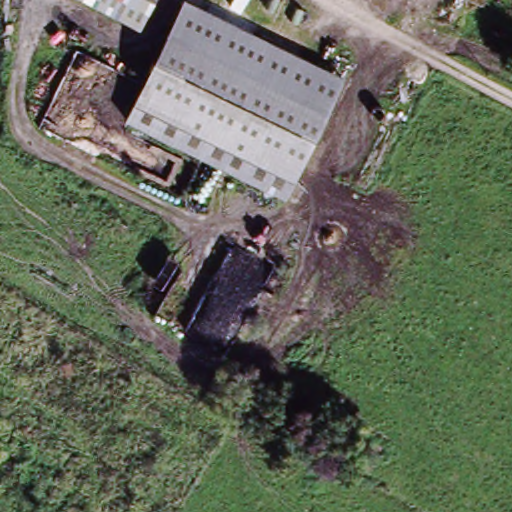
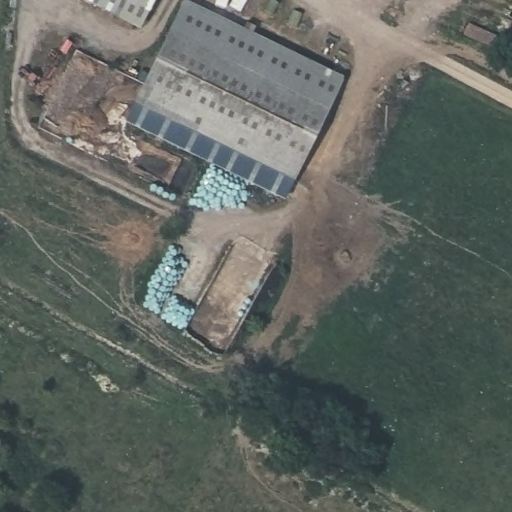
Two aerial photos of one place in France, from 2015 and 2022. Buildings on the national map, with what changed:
unchanged [(160,0),(143,32),(84,0),(160,0)]
unchanged [(283,199),(120,122),(159,37),(175,4),(337,80),(325,109),(283,199)]

